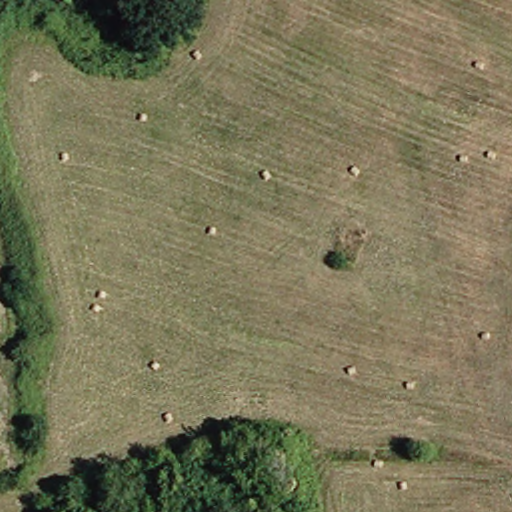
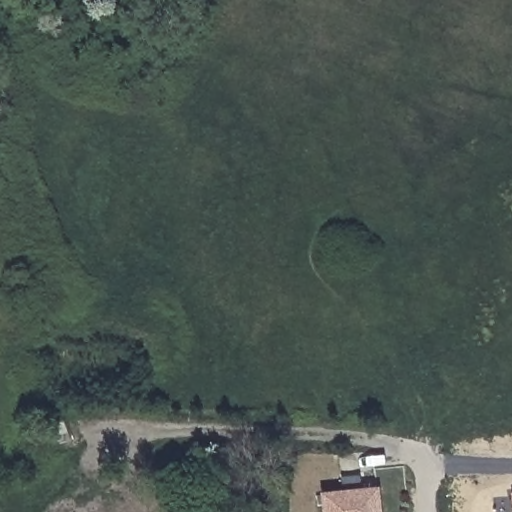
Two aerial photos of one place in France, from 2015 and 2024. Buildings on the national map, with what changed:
new [(378,491),(380,512),(326,512),(324,496),(378,491)]
new [(511,493),(512,493),(512,508),(511,493)]

